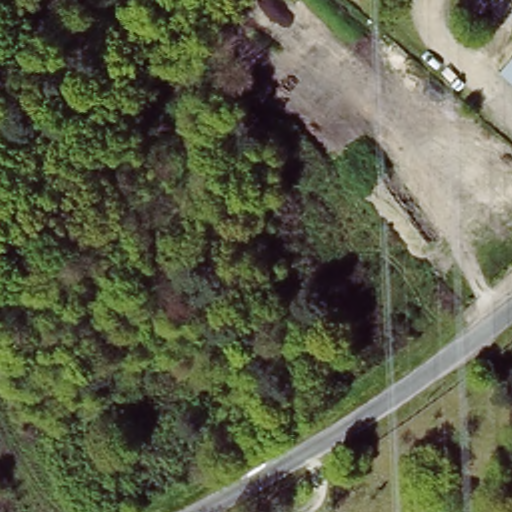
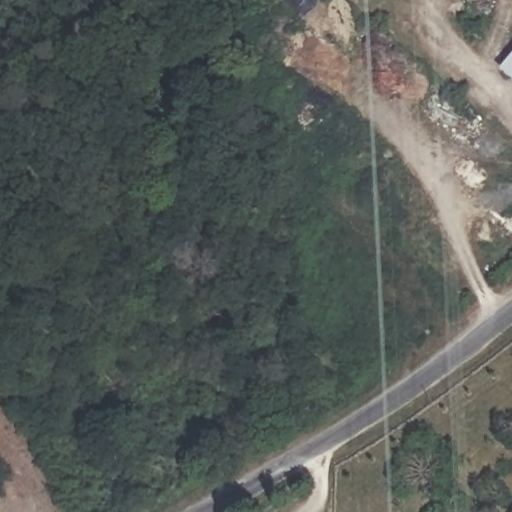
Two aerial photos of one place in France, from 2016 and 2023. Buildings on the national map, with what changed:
unchanged [(512,83),(495,69),(512,48),(512,83)]

